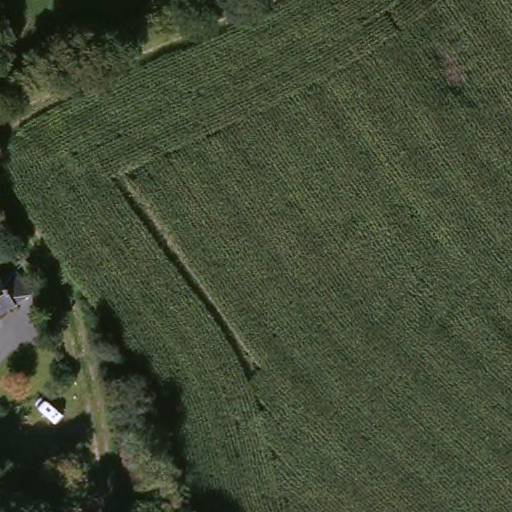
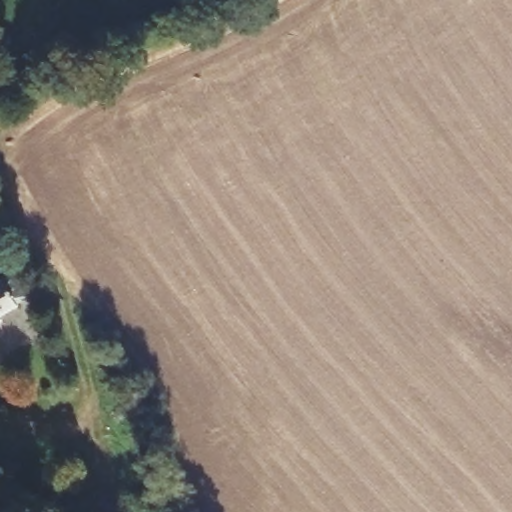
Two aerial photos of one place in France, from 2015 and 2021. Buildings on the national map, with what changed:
unchanged [(16,309),(0,319),(0,285),(16,309)]

